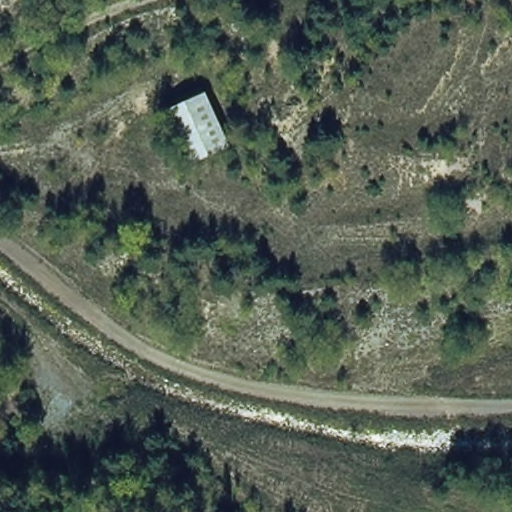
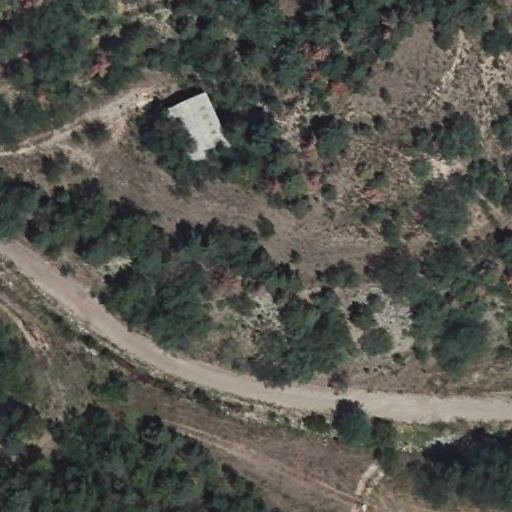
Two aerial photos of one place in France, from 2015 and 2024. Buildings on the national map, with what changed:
unchanged [(230,145),(187,165),(162,109),(203,94),(230,145)]

